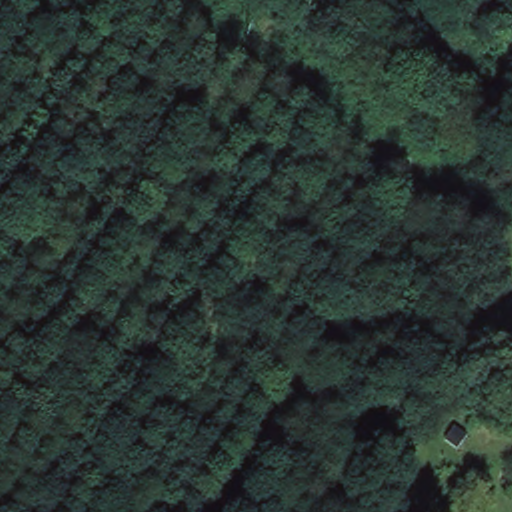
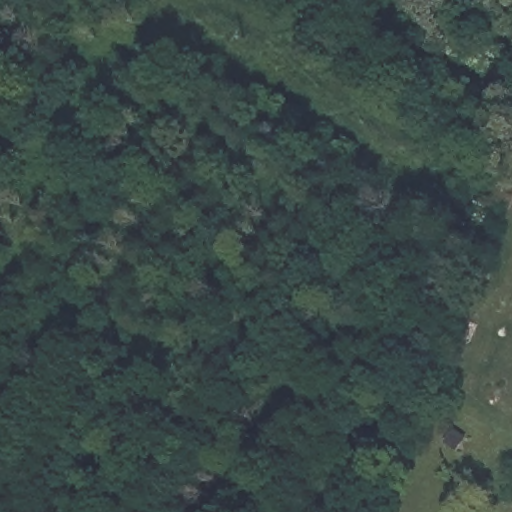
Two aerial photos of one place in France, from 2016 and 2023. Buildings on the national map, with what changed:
unchanged [(384,277),(405,244),(429,256),(407,289),(384,277)]

